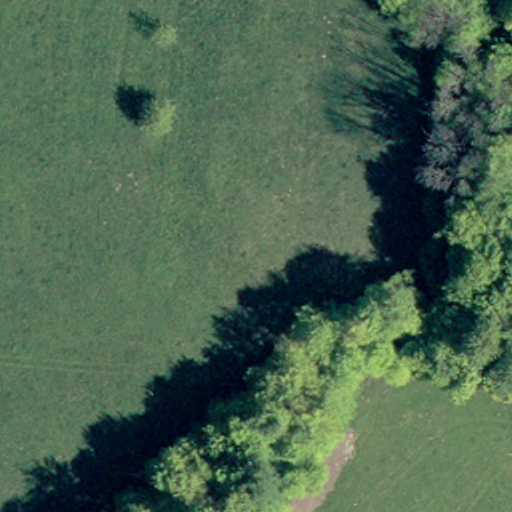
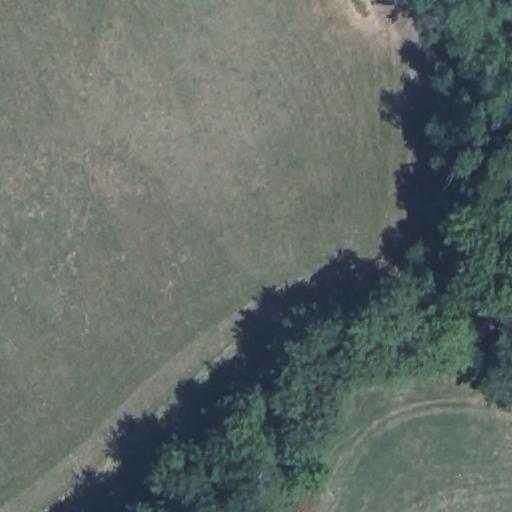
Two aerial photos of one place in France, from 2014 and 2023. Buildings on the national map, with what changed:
[]

